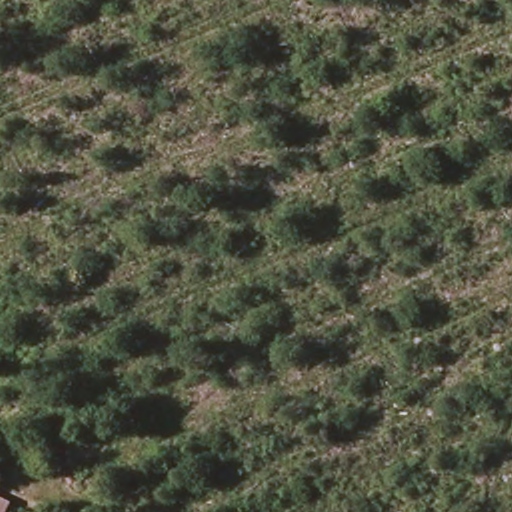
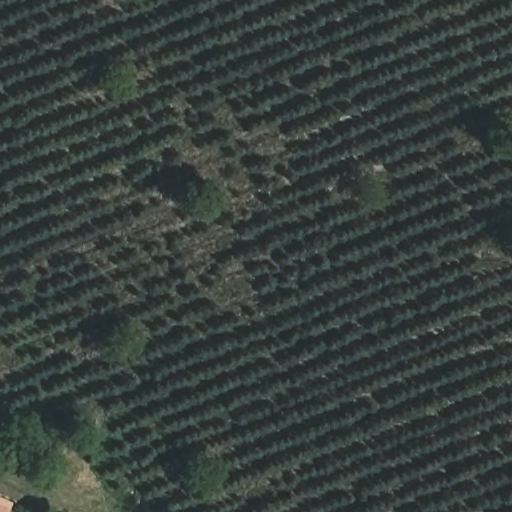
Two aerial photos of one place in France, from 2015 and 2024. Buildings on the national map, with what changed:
unchanged [(10,502),(6,512),(0,512),(0,498),(10,502)]

